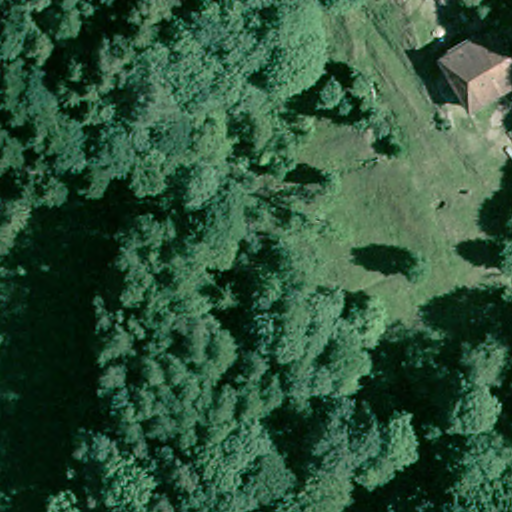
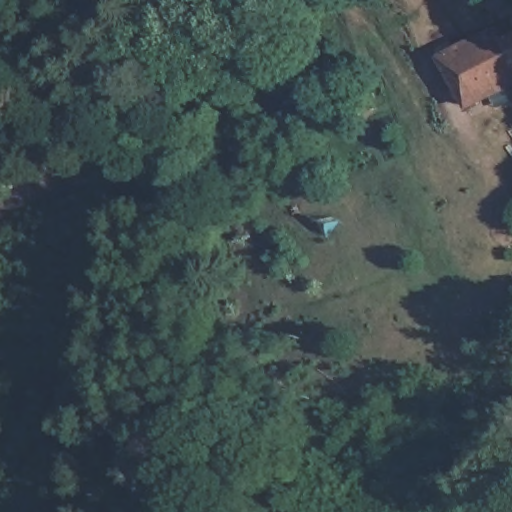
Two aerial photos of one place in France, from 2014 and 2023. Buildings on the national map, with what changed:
unchanged [(441,56),(499,22),(511,47),(512,47),(512,85),(469,112),(441,56)]

